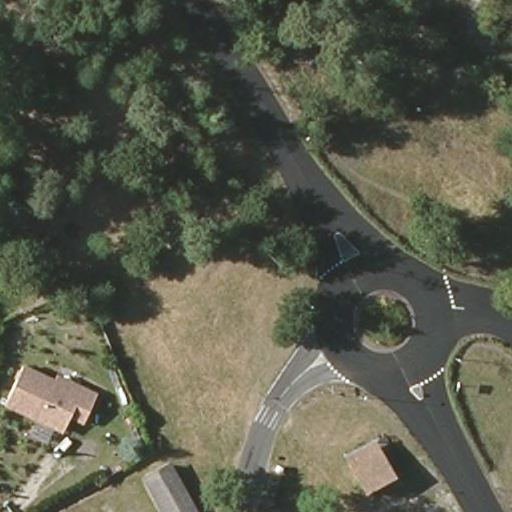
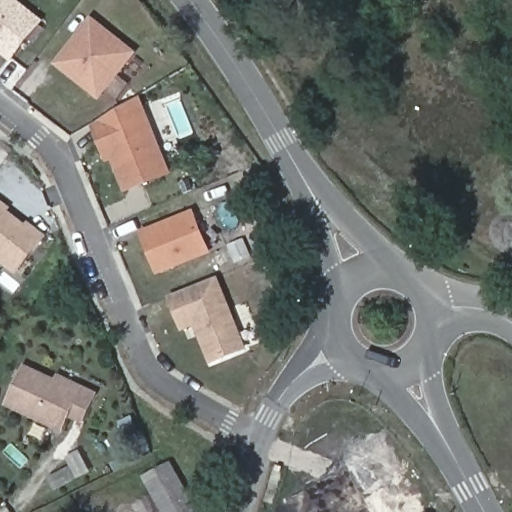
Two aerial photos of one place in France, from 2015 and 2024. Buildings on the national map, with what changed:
new [(12,64),(0,55),(0,0),(17,0),(45,22),(12,64)]
new [(56,65),(91,21),(132,54),(98,97),(80,82),(73,77),(56,65)]
new [(108,159),(95,125),(137,99),(168,174),(127,190),(113,157),(108,159)]
new [(47,237),(17,277),(0,263),(0,201),(12,210),(9,213),(26,226),(28,222),(47,237)]
new [(157,275),(140,234),(192,214),(208,257),(157,275)]
new [(196,323),(184,328),(171,298),(216,279),(244,349),(212,362),(201,335),(197,326),(196,323)]
unchanged [(93,430),(78,422),(71,440),(11,413),(34,371),(65,384),(93,397),(104,402),(93,430)]
unchanged [(366,495),(350,467),(346,458),(375,442),(380,451),(395,480),(366,495)]
unchanged [(145,481),(169,467),(193,512),(161,512),(145,481)]

